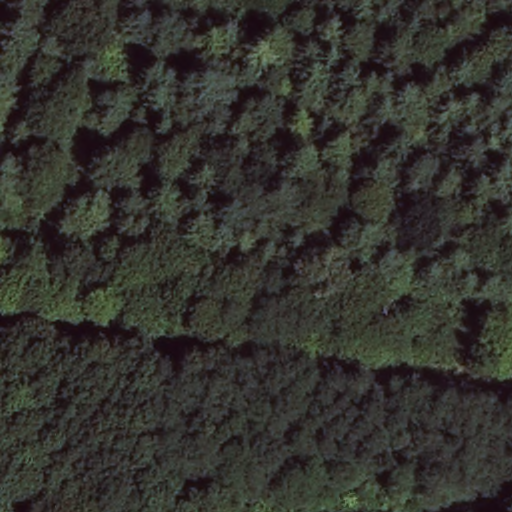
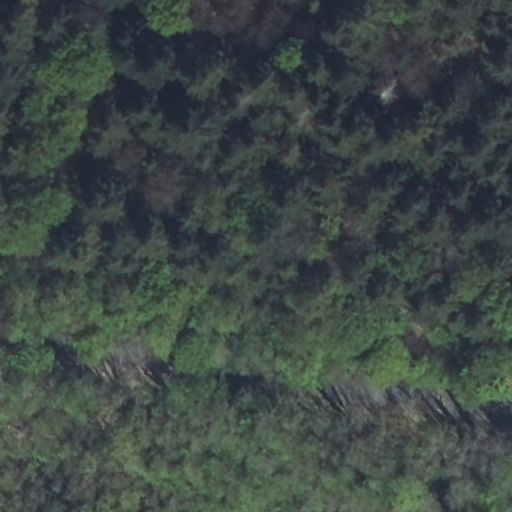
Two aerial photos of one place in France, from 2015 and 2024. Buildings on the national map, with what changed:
[]

